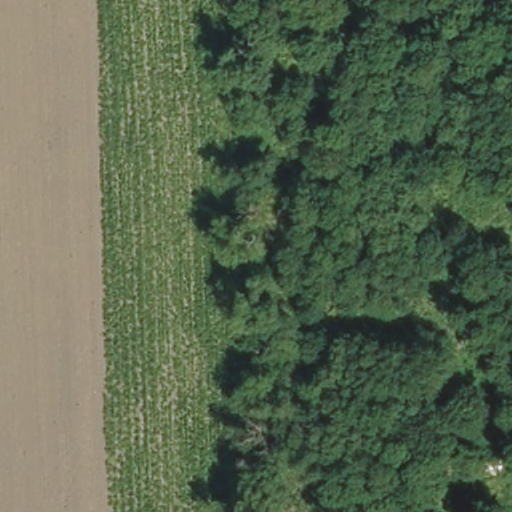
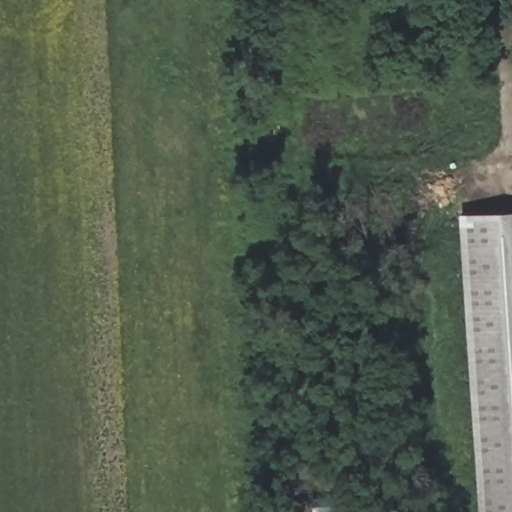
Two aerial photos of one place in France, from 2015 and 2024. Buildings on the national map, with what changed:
new [(477,512),(457,212),(512,209),(512,512),(477,512)]

